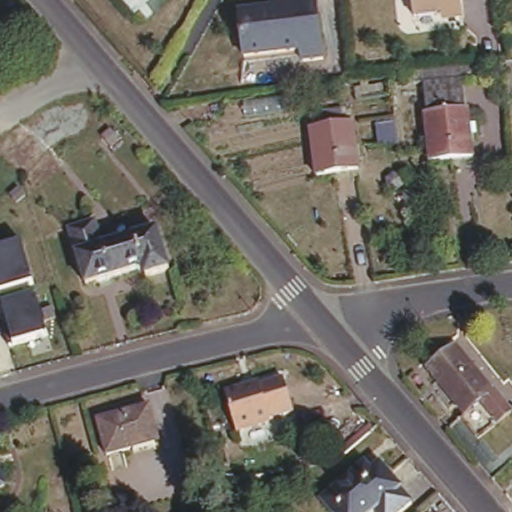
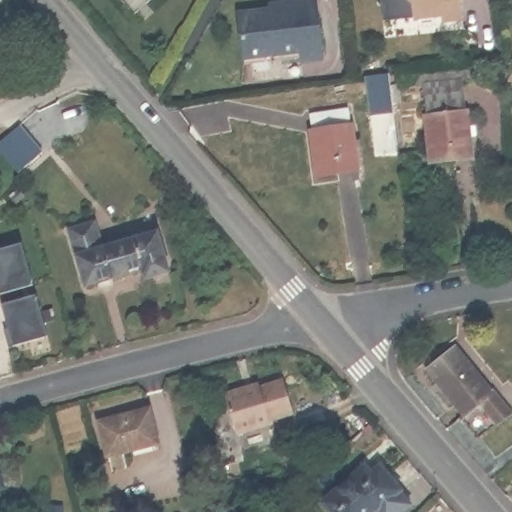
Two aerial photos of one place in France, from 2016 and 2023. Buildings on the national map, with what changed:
unchanged [(283,8),(282,3),(306,0),(319,0),(326,59),(305,61),(304,58),(246,65),(246,59),(240,13),(283,8)]
unchanged [(450,16),(443,11),(416,14),(414,0),(463,0),(464,15),(450,16)]
unchanged [(428,111),(427,88),(462,86),(463,106),(472,107),(475,157),(429,159),(428,111)]
unchanged [(314,111),(352,106),(359,169),(316,174),(310,129),(315,128),(314,111)]
new [(9,166),(0,155),(0,139),(17,124),(33,145),(39,154),(15,175),(9,166)]
unchanged [(150,229),(162,271),(141,277),(139,270),(82,287),(66,228),(93,220),(100,244),(150,229)]
unchanged [(0,295),(0,250),(23,244),(35,286),(0,295)]
unchanged [(50,337),(13,347),(1,304),(37,295),(50,337)]
unchanged [(426,369),(452,348),(489,395),(492,394),(509,415),(496,426),(478,404),(463,415),(426,369)]
unchanged [(228,396),(258,387),(258,389),(292,379),(303,412),(270,421),(271,425),(236,435),(225,401),(228,396)]
unchanged [(136,458),(132,442),(106,447),(98,413),(139,403),(149,401),(154,421),(149,422),(152,436),(156,453),(148,455),(136,458)]
unchanged [(387,512),(374,512),(368,506),(361,512),(329,512),(315,496),(357,458),(365,467),(373,459),(395,482),(393,484),(405,497),(387,512)]
unchanged [(0,472),(5,485),(0,486),(0,472)]

